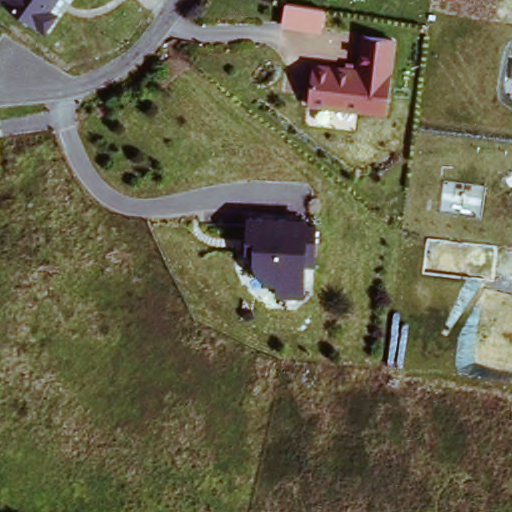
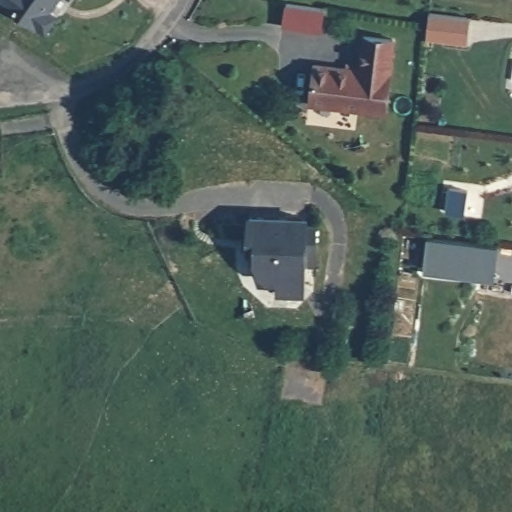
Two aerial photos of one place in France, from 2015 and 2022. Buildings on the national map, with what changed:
unchanged [(58,16),(46,35),(0,5),(0,0),(58,0),(52,11),(58,16)]
unchanged [(325,8),(321,32),(281,24),(286,0),(288,0),(325,8)]
unchanged [(388,109),(312,100),(317,61),(361,66),(365,34),(397,37),(388,109)]
new [(471,198),(468,218),(448,215),(452,195),(471,198)]
unchanged [(250,217),(308,220),(308,224),(319,224),(317,261),(307,261),(305,285),(298,292),(280,291),(280,279),(267,278),(257,260),(256,245),(249,245),(250,217)]
new [(502,250),(498,285),(422,276),(427,241),(502,250)]

